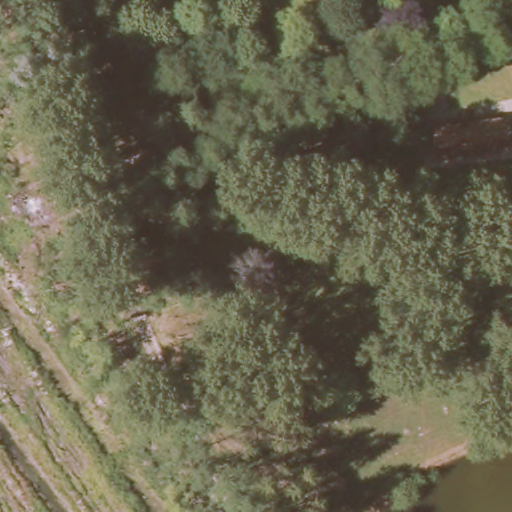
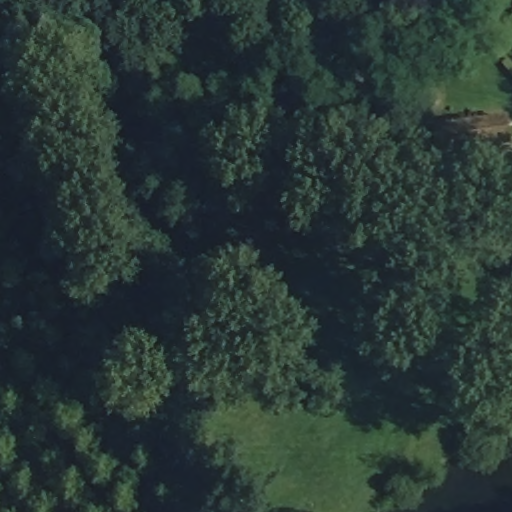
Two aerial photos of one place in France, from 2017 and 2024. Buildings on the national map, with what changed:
unchanged [(505,119),(508,145),(433,154),(430,128),(505,119)]

